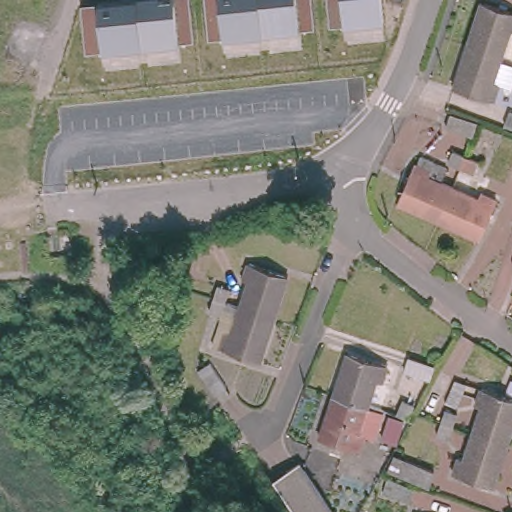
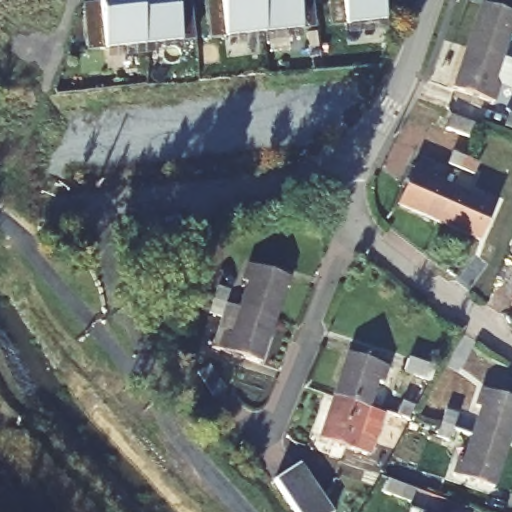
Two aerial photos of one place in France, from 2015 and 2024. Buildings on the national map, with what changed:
unchanged [(104,51),(102,48),(85,52),(80,7),(99,3),(128,0),(189,0),(194,41),(180,40),(180,45),(181,55),(105,62),(104,51)]
unchanged [(225,50),(224,41),(224,35),(209,40),(205,0),(310,0),(313,30),(300,30),(300,35),(302,44),(225,50)]
unchanged [(344,22),(329,27),(327,0),(381,0),(384,27),(345,29),(344,22)]
unchanged [(481,0),(512,11),(512,28),(510,32),(505,30),(498,52),(467,41),(481,0)]
unchanged [(498,52),(490,77),(497,80),(490,99),(452,86),(467,41),(498,52)]
unchanged [(439,223),(399,206),(415,169),(430,175),(427,181),(452,192),(439,223)]
unchanged [(452,192),(475,202),(479,195),(495,202),(479,241),(439,223),(452,192)]
unchanged [(242,311),(250,285),(242,282),(249,265),(287,277),(273,321),(242,311)]
unchanged [(273,321),(260,363),(220,350),(225,332),(234,335),(242,311),(273,321)]
unchanged [(332,395),(346,353),(385,366),(379,384),(372,382),(364,406),(332,395)]
unchanged [(482,410),(475,407),(481,390),(512,400),(512,427),(505,446),(473,436),(482,410)]
unchanged [(364,406),(356,431),(362,433),(357,451),(317,438),(332,395),(364,406)]
unchanged [(505,446),(491,490),(452,476),(458,458),(465,460),(473,436),(505,446)]
unchanged [(272,481),(297,466),(329,512),(294,512),(272,481)]
unchanged [(373,475),(368,488),(345,480),(350,466),(373,475)]
unchanged [(408,502),(382,493),(387,480),(412,489),(408,502)]

